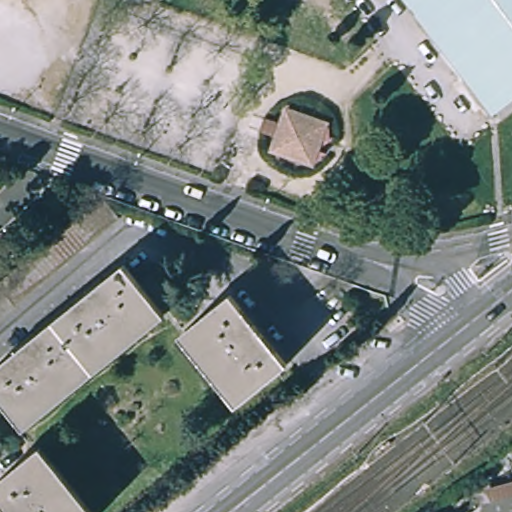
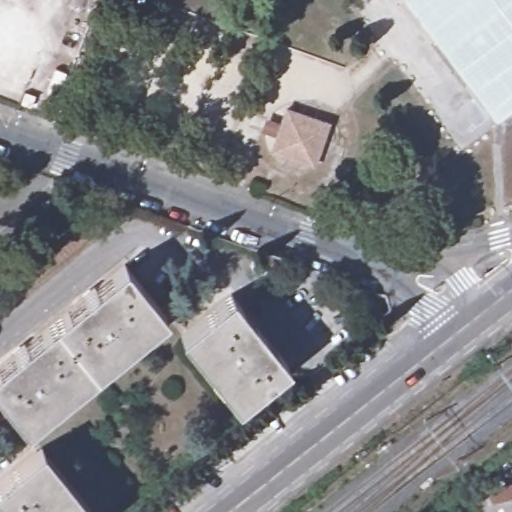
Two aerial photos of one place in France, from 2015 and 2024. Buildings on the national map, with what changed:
unchanged [(410,0),(512,0),(512,94),(492,109),(410,0)]
unchanged [(310,164),(270,151),(283,110),(324,124),(310,164)]
unchanged [(101,198),(118,220),(0,318),(0,281),(101,198)]
unchanged [(0,400),(0,362),(123,263),(159,309),(18,423),(0,400)]
unchanged [(239,402),(181,330),(229,292),(287,364),(239,402)]
unchanged [(0,493),(0,478),(39,447),(91,512),(14,512),(0,493)]
unchanged [(512,485),(512,498),(479,507),(475,495),(512,485)]
unchanged [(479,507),(512,498),(512,512),(473,512),(479,507)]
unchanged [(451,502),(458,512),(437,512),(451,502)]

